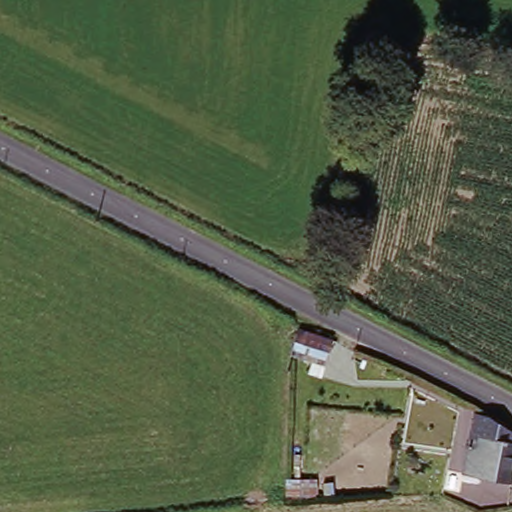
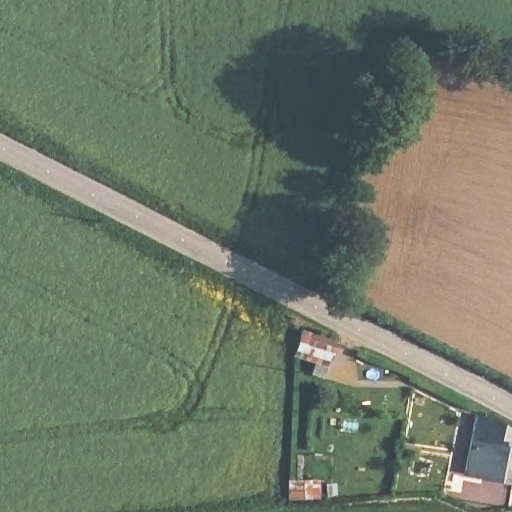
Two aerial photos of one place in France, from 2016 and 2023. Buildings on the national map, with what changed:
unchanged [(305,333),(335,347),(323,376),(293,364),(305,333)]
unchanged [(478,421),(487,421),(512,436),(512,491),(474,490),(478,421)]

